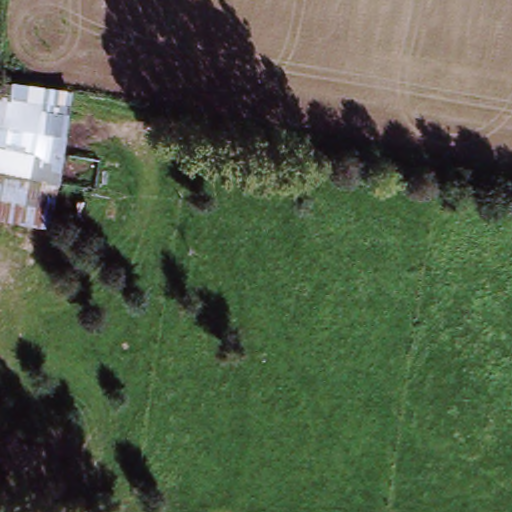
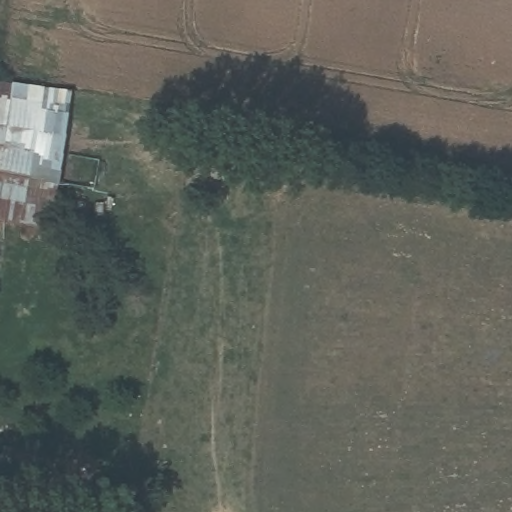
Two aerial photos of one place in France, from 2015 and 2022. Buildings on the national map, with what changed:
unchanged [(20,81),(76,89),(70,153),(106,161),(98,189),(67,183),(57,228),(0,219),(0,78),(20,81)]

